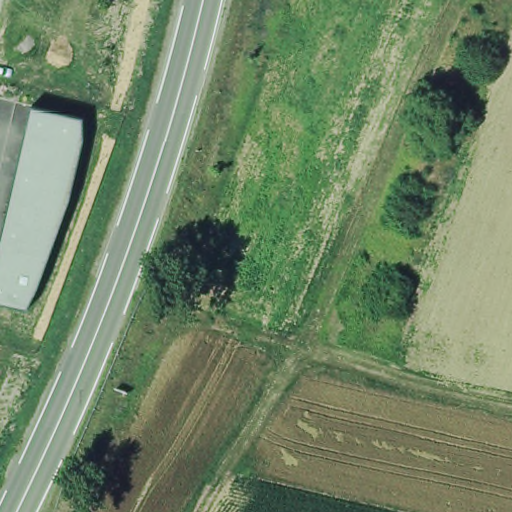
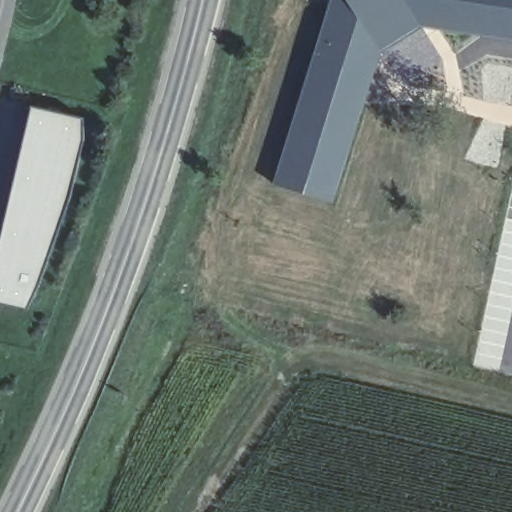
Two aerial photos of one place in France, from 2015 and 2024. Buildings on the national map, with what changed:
new [(382,53),(335,203),(273,184),(330,0),(512,0),(512,40),(423,27),(382,53)]
unchanged [(85,138),(72,192),(38,292),(27,308),(0,301),(0,244),(33,105),(83,118),(85,138)]

